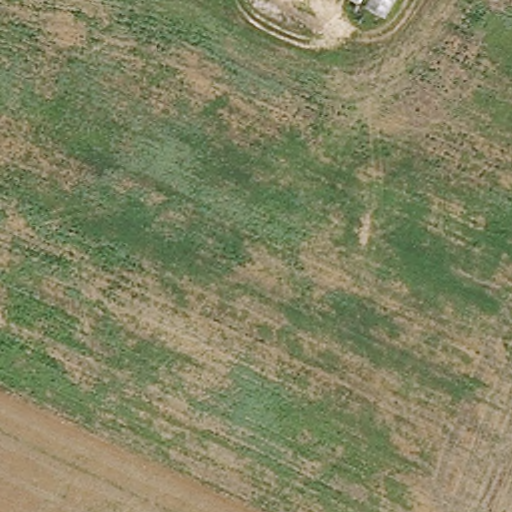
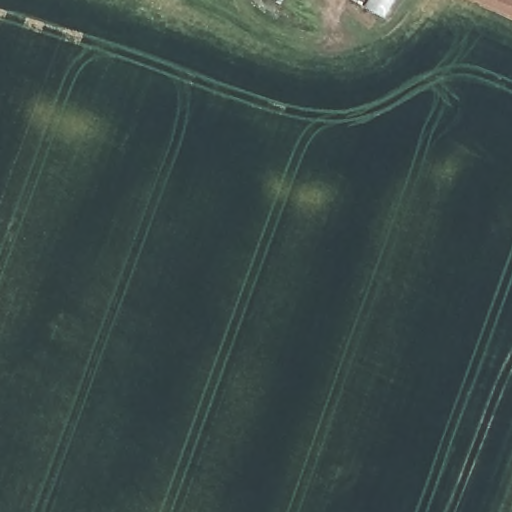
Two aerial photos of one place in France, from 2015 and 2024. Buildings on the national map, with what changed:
unchanged [(359,1),(356,0),(360,0),(359,1)]
unchanged [(366,7),(370,0),(397,0),(386,19),(366,7)]

